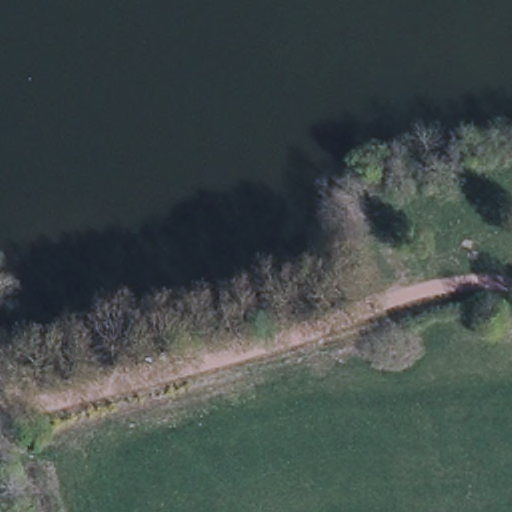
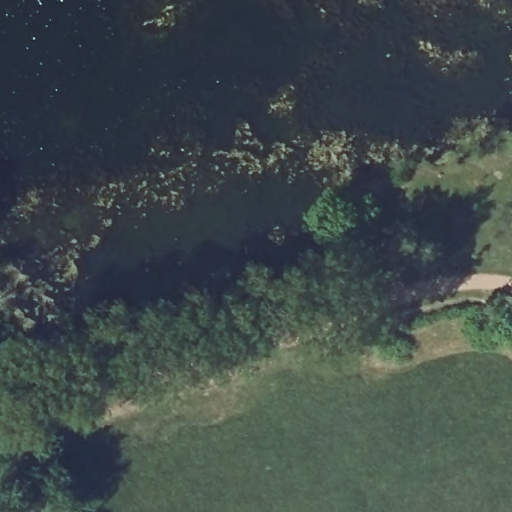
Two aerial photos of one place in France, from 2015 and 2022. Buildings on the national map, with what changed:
[]

